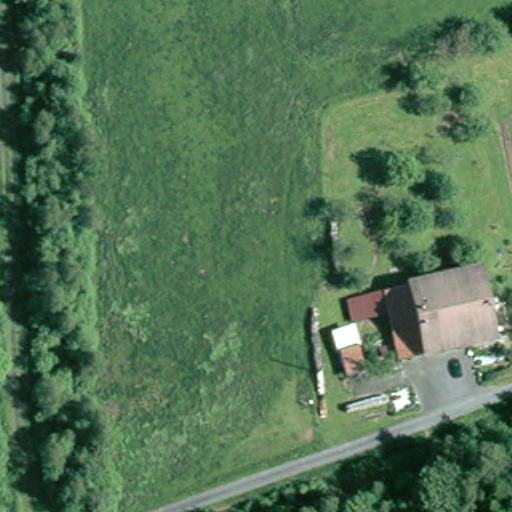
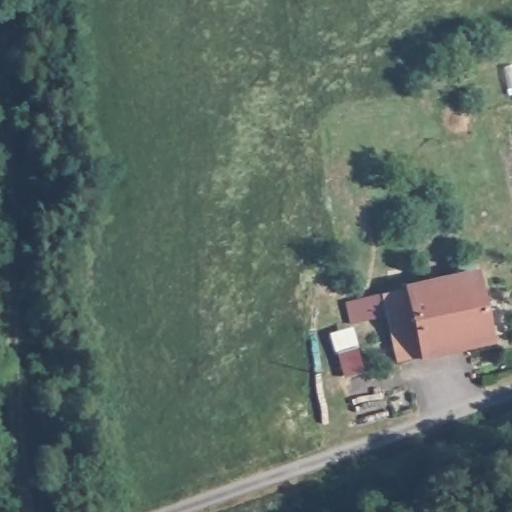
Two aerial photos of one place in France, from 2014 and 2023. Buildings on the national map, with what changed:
unchanged [(383,296),(477,269),(494,340),(397,368),(383,296)]

